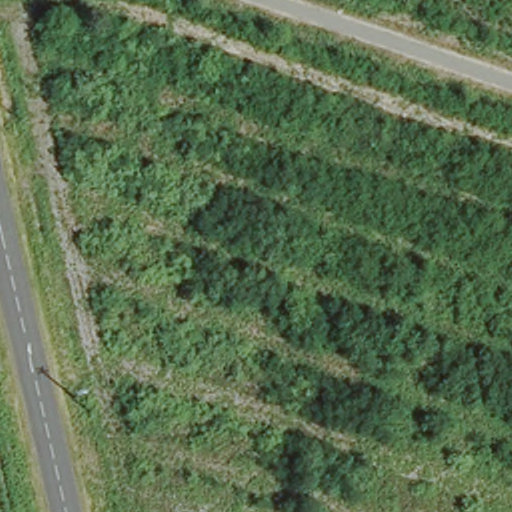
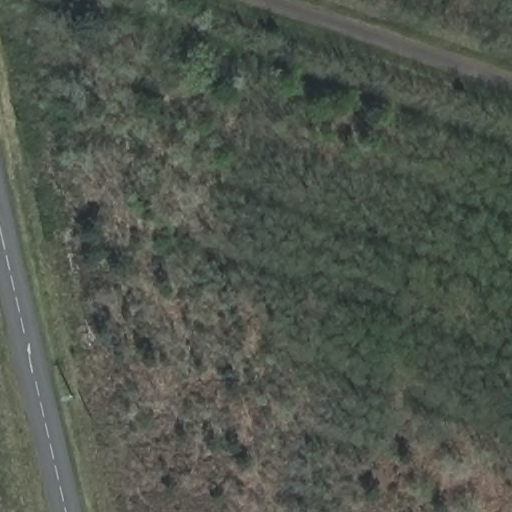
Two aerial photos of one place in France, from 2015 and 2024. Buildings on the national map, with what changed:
[]

